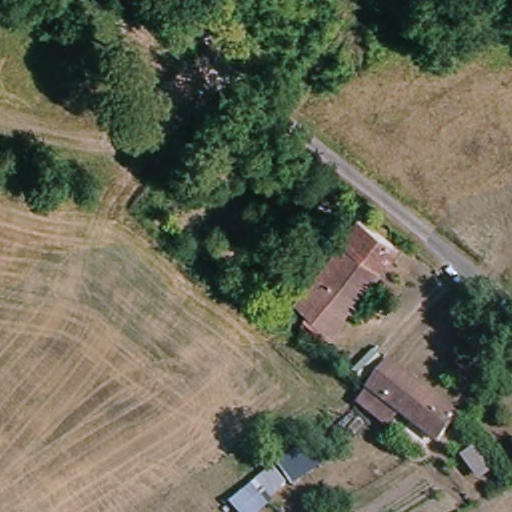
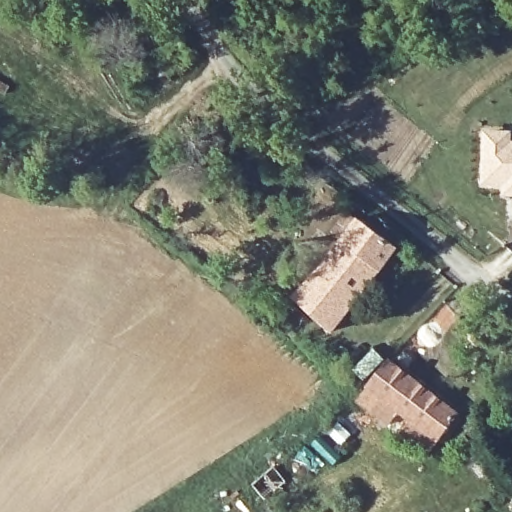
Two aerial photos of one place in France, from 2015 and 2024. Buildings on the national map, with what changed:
new [(512,132),(512,196),(503,196),(502,187),(482,187),(483,131),(512,132)]
unchanged [(328,331),(293,305),(355,222),(390,247),(328,331)]
unchanged [(366,387),(383,365),(449,416),(432,438),(366,387)]
unchanged [(387,427),(357,403),(367,389),(398,412),(387,427)]
unchanged [(309,438),(323,462),(287,487),(282,483),(255,512),(231,512),(225,504),(268,470),(309,438)]

